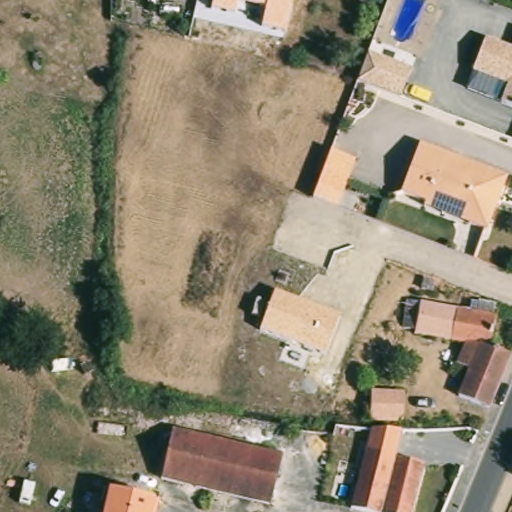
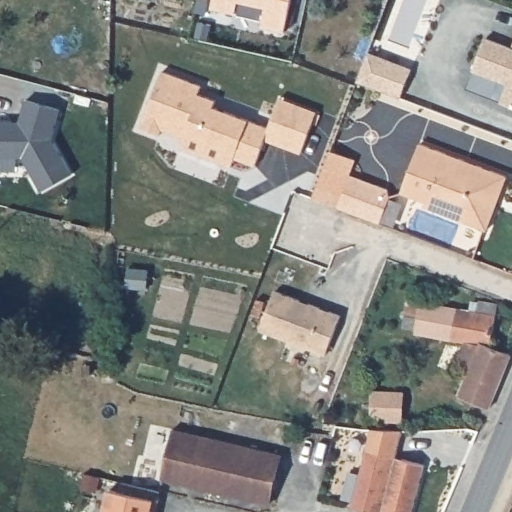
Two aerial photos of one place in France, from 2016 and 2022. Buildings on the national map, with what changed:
unchanged [(265,6),(237,0),(234,15),(211,11),(213,0),(291,0),(284,33),(262,27),(265,6)]
unchanged [(473,69),(486,37),(512,47),(512,105),(502,101),(508,83),(473,69)]
unchanged [(412,69),(401,98),(357,82),(367,54),(412,69)]
new [(169,139),(142,130),(164,73),(203,88),(200,96),(217,102),(215,109),(270,129),(281,99),(318,113),(303,155),(267,141),(257,167),(237,160),(234,169),(189,153),(192,142),(171,134),(169,139)]
new [(22,157),(0,157),(0,120),(21,120),(26,100),(60,109),(52,138),(72,174),(42,191),(22,157)]
unchanged [(427,201),(402,192),(420,143),(507,175),(487,229),(470,222),(425,206),(427,201)]
unchanged [(337,208),(312,200),(331,149),(355,160),(337,208)]
unchanged [(260,333),(263,319),(251,315),(256,298),(268,304),(274,290),(340,314),(324,356),(260,333)]
unchanged [(495,345),(512,352),(512,361),(496,400),(492,407),(462,395),(473,368),(461,363),(469,342),(419,333),(420,330),(407,328),(411,300),(420,301),(472,309),(473,309),(475,301),(482,302),(482,299),(502,302),(500,314),(497,327),(495,345)]
unchanged [(376,391),(416,393),(415,419),(407,418),(407,420),(375,418),(376,391)]
unchanged [(280,454),(268,504),(157,478),(169,429),(280,454)]
unchanged [(376,429),(405,432),(397,461),(370,454),(376,429)]
unchanged [(370,454),(428,469),(417,512),(357,512),(355,511),(370,454)]
unchanged [(109,489),(156,500),(153,512),(104,512),(109,489)]

